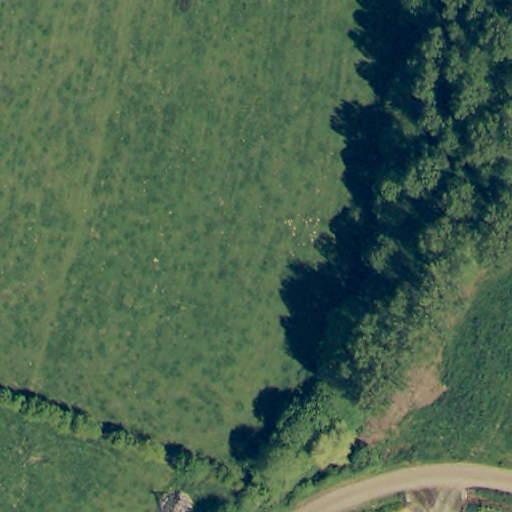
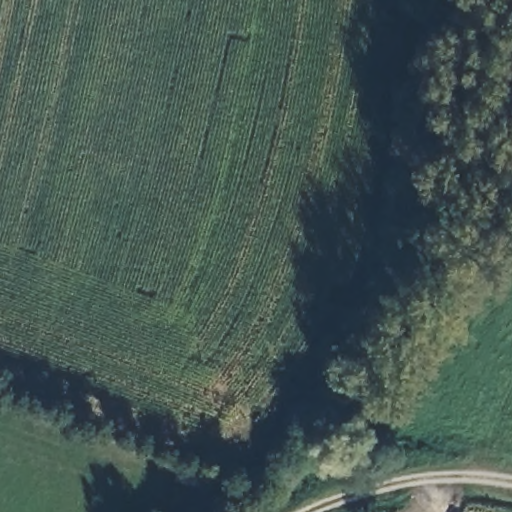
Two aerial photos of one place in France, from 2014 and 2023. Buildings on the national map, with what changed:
[]

